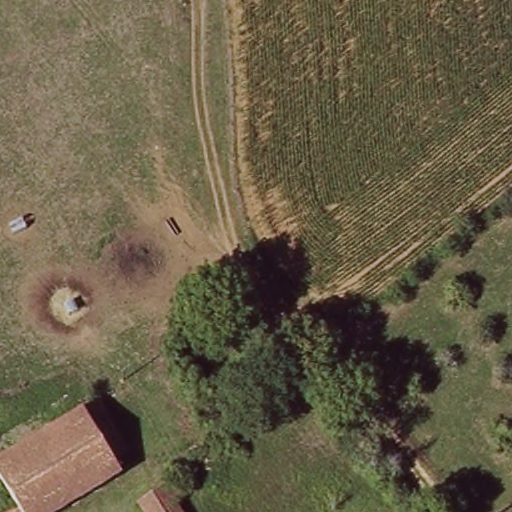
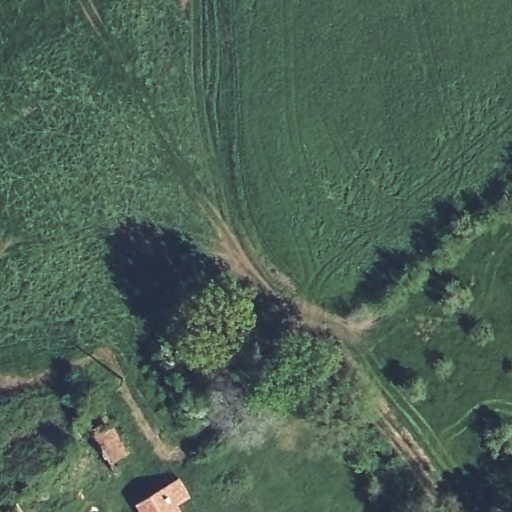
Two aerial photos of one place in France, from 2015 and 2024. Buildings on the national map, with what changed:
demolished [(128,465),(51,512),(16,512),(19,510),(0,476),(0,459),(89,405),(118,451),(128,465)]
unchanged [(179,509),(180,512),(146,512),(142,506),(179,483),(194,500),(179,509)]
unchanged [(20,512),(16,512),(19,510),(20,512)]

